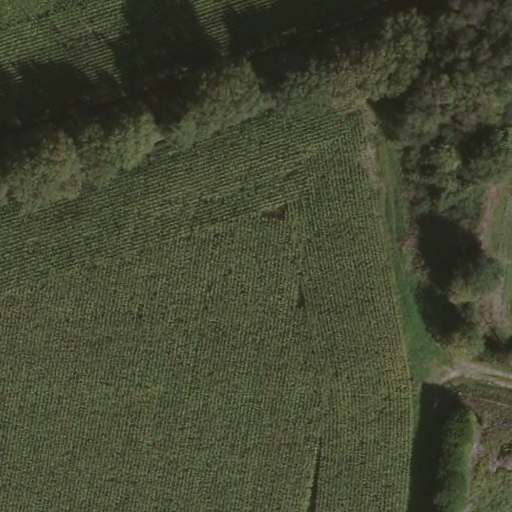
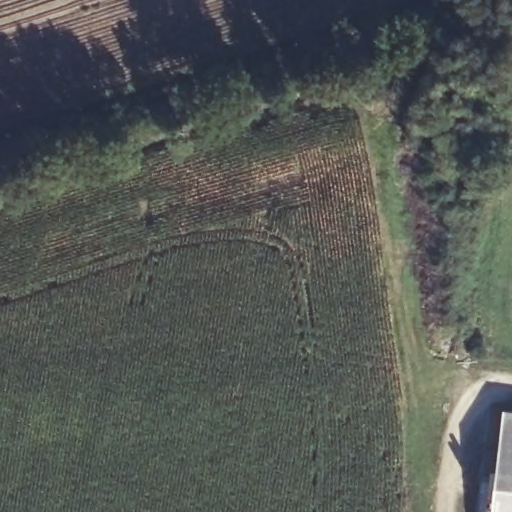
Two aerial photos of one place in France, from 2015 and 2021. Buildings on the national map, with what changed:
new [(505,411),(512,412),(512,512),(494,512),(505,411)]

